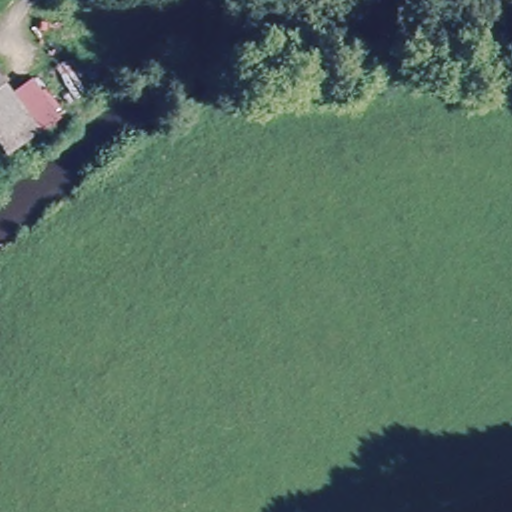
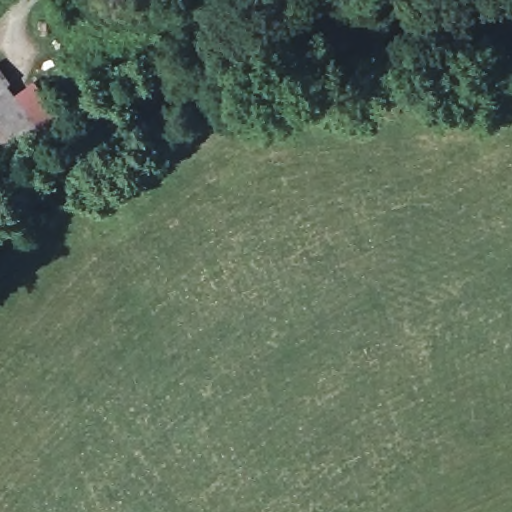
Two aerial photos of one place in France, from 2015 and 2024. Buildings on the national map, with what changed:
unchanged [(0,132),(0,79),(25,114),(0,132)]

